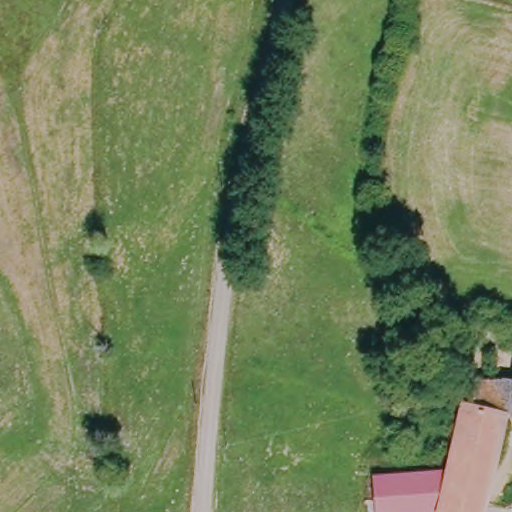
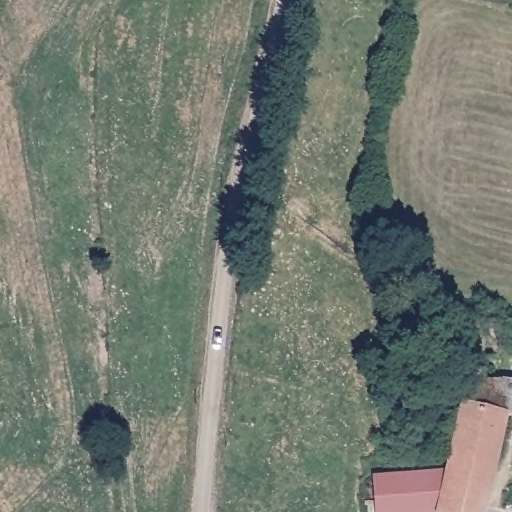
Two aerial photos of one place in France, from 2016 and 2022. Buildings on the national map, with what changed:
unchanged [(475,381),(512,388),(512,417),(510,417),(469,407),(475,381)]
unchanged [(461,405),(469,407),(510,417),(486,512),(436,512),(445,475),(461,405)]
unchanged [(445,475),(436,512),(375,512),(373,478),(445,475)]

